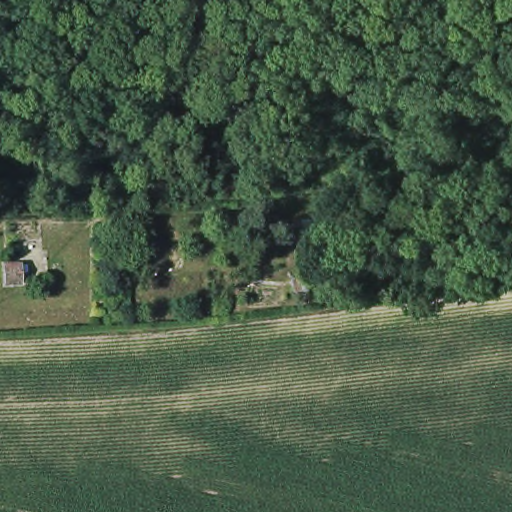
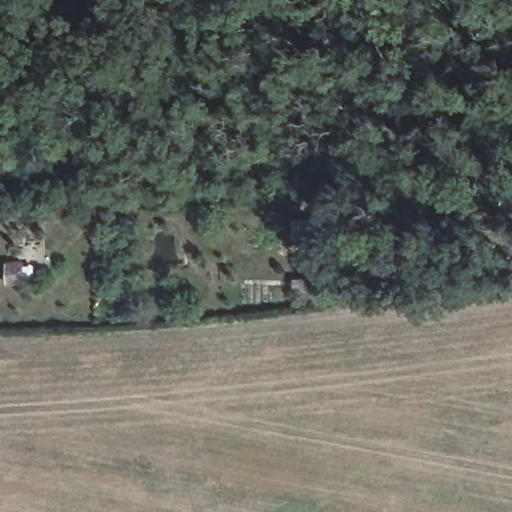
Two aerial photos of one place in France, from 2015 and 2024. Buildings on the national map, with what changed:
unchanged [(5,278),(4,262),(35,260),(35,276),(5,278)]

